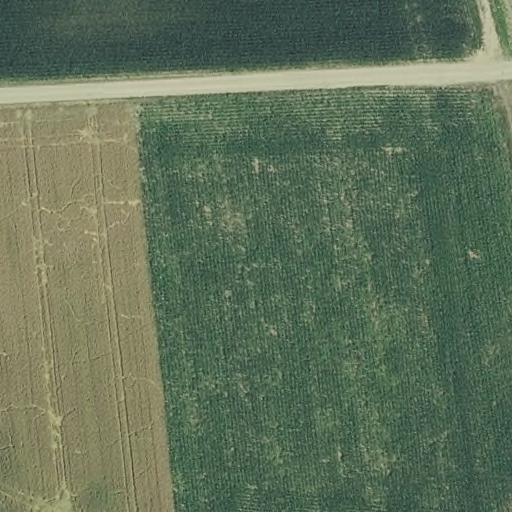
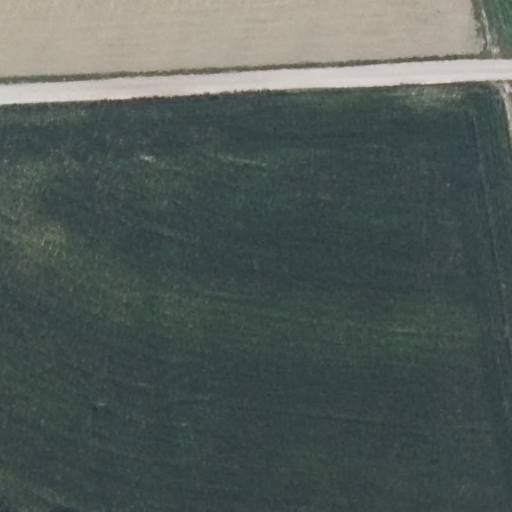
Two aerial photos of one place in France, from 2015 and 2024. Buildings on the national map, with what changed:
[]

